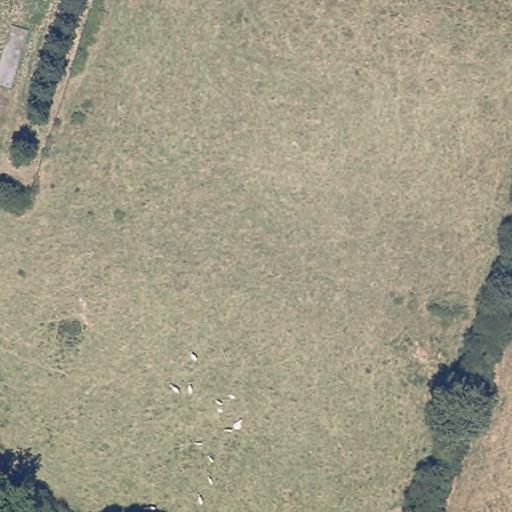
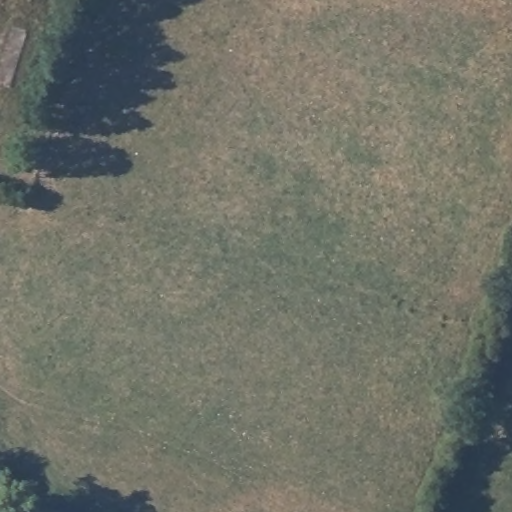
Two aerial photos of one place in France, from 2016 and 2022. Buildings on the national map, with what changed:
[]

